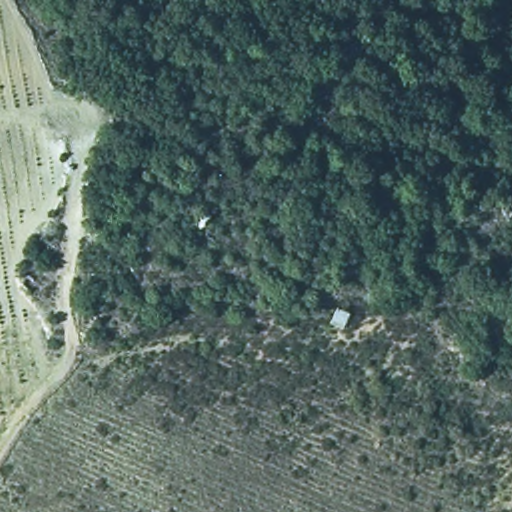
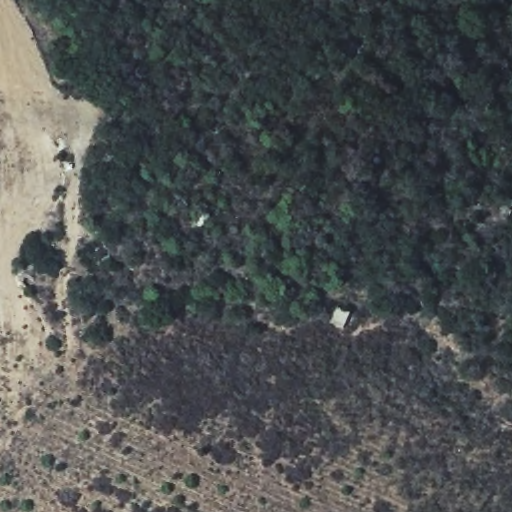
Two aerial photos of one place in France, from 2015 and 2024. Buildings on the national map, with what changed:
unchanged [(347,316),(341,330),(326,324),(331,311),(347,316)]

